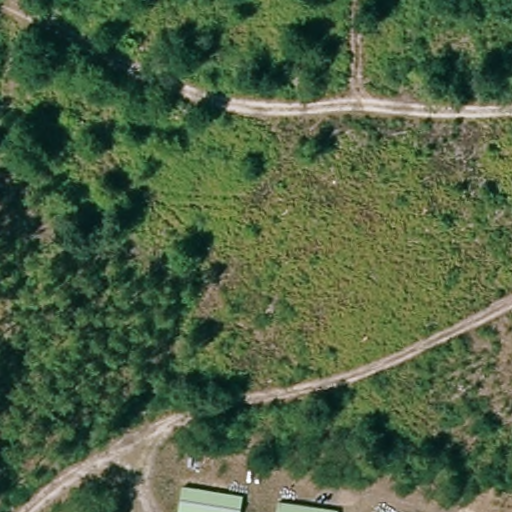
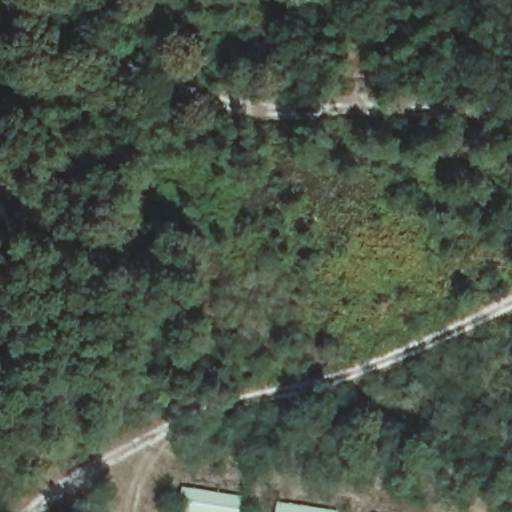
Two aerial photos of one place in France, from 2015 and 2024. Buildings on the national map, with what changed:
unchanged [(242,496),(239,512),(178,512),(182,487),(242,496)]
unchanged [(334,512),(277,512),(278,503),(334,512)]

